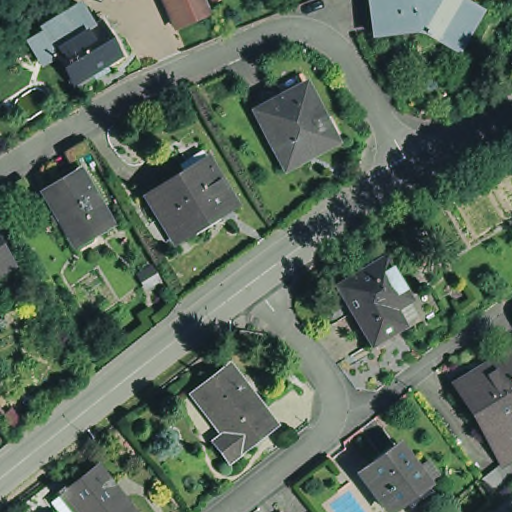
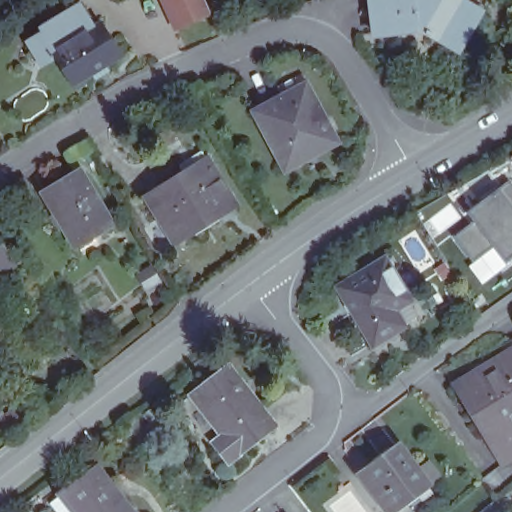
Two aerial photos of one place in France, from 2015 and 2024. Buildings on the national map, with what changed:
unchanged [(174,25),(163,0),(204,0),(208,10),(174,25)]
unchanged [(483,12),(461,51),(428,32),(418,30),(375,35),(371,0),(461,0),(483,12)]
unchanged [(124,57),(80,85),(60,52),(48,34),(46,31),(83,7),(88,16),(96,30),(104,25),(124,57)]
unchanged [(309,86),(337,140),(306,156),(309,160),(288,171),(257,113),(309,86)]
unchanged [(221,107),(247,94),(257,113),(231,127),(221,107)]
unchanged [(178,244),(149,199),(186,176),(181,167),(203,154),(208,162),(236,206),(178,244)]
unchanged [(79,177),(110,230),(73,251),(43,197),(79,177)]
new [(495,246),(475,262),(457,237),(477,222),(489,212),(477,222),(470,213),(482,204),(511,182),(512,184),(512,258),(507,262),(495,246)]
unchanged [(13,273),(0,281),(0,252),(13,273)]
unchanged [(399,326),(400,327),(370,345),(335,288),(381,260),(407,301),(405,302),(414,316),(399,326)]
unchanged [(512,347),(512,350),(511,347),(512,347)]
unchanged [(491,447),(488,448),(453,391),(512,355),(512,463),(504,468),(491,447)]
unchanged [(278,427),(231,463),(214,443),(226,434),(194,393),(229,366),(278,427)]
unchanged [(434,485),(398,512),(397,512),(368,473),(404,447),(434,485)]
unchanged [(61,495),(69,488),(71,492),(104,467),(140,512),(64,512),(57,503),(64,498),(61,495)]

